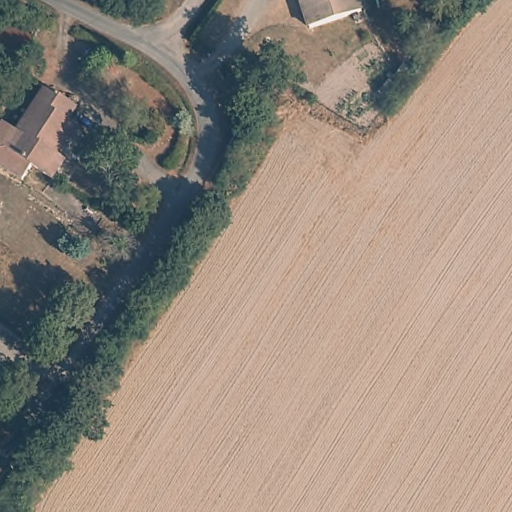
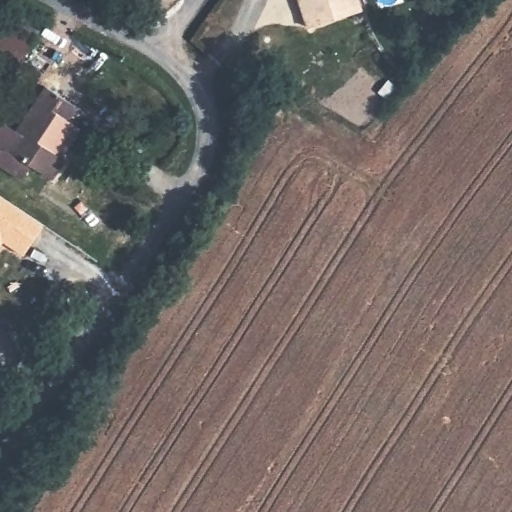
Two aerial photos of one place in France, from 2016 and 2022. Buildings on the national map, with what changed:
unchanged [(361,15),(310,28),(304,0),(357,0),(361,15)]
unchanged [(71,117),(83,124),(68,153),(70,155),(58,176),(36,164),(25,180),(0,164),(0,122),(2,119),(20,130),(48,83),(79,102),(71,117)]
new [(26,257),(4,243),(0,250),(0,195),(45,226),(26,257)]

